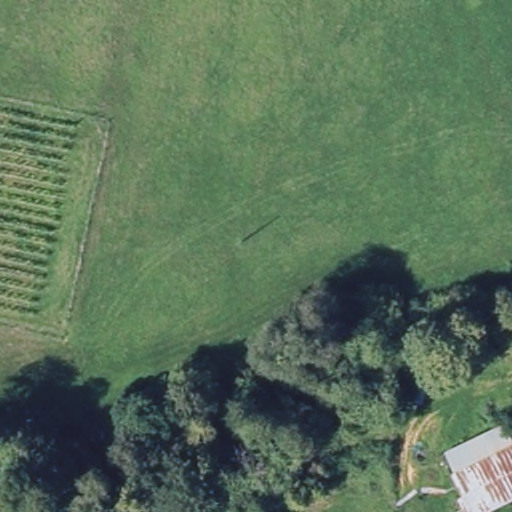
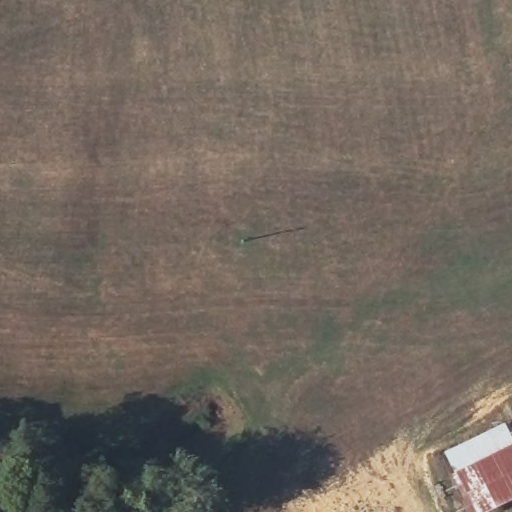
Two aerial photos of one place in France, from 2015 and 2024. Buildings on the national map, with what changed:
unchanged [(461,464),(512,438),(512,512),(469,512),(448,471),(461,464)]

